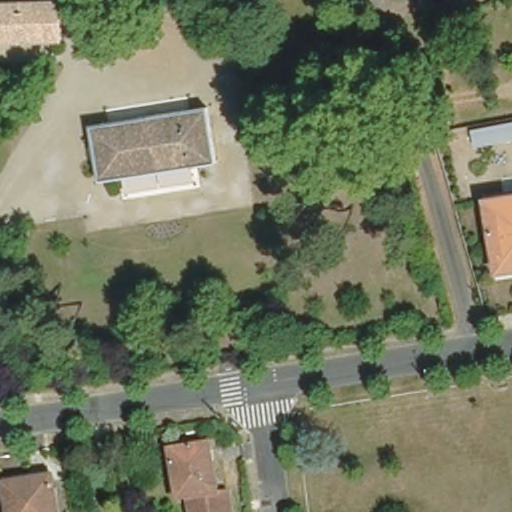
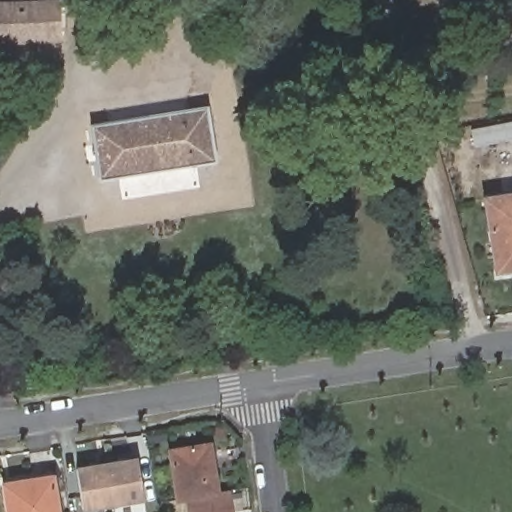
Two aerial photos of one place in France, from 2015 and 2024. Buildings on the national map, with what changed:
unchanged [(61,37),(0,40),(0,4),(61,2),(61,37)]
unchanged [(99,180),(90,125),(207,105),(215,161),(99,180)]
unchanged [(512,126),(512,128),(512,139),(470,146),(468,132),(512,126)]
unchanged [(497,271),(487,200),(512,196),(512,268),(497,271)]
unchanged [(169,448),(208,442),(215,478),(217,490),(229,489),(232,512),(192,512),(190,494),(178,496),(169,448)]
new [(85,512),(77,467),(136,457),(144,501),(85,512)]
unchanged [(7,512),(3,481),(50,474),(56,512),(7,512)]

